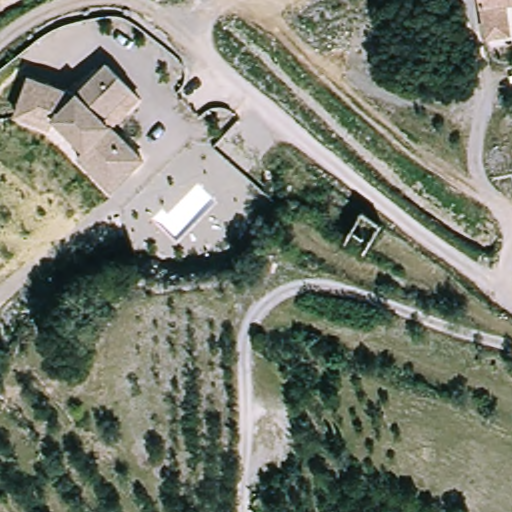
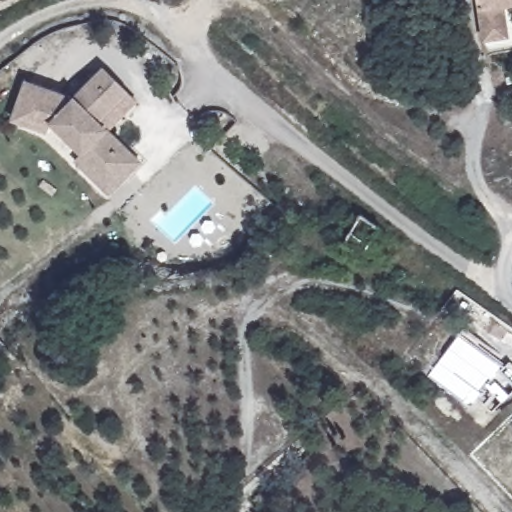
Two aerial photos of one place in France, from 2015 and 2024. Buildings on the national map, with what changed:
unchanged [(504,7),(508,39),(485,42),(479,0),(512,0),(512,6),(504,7)]
unchanged [(15,122),(18,112),(26,85),(65,96),(72,101),(103,66),(127,88),(136,96),(109,127),(127,142),(105,167),(78,144),(53,122),(51,132),(15,122)]
unchanged [(144,157),(115,191),(71,152),(78,144),(105,167),(127,142),(144,157)]
new [(460,335),(502,369),(510,362),(512,364),(512,392),(490,413),(477,398),(470,407),(428,376),(460,335)]

